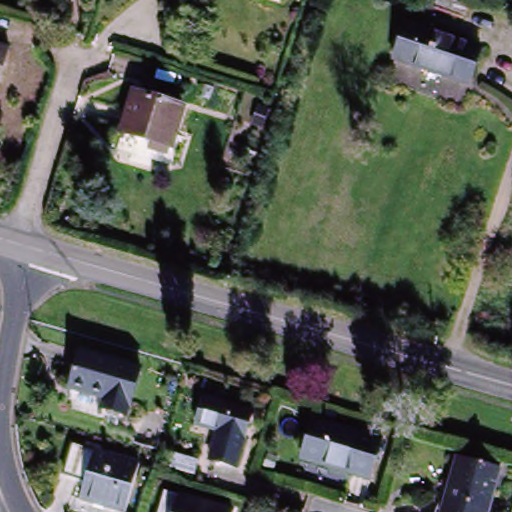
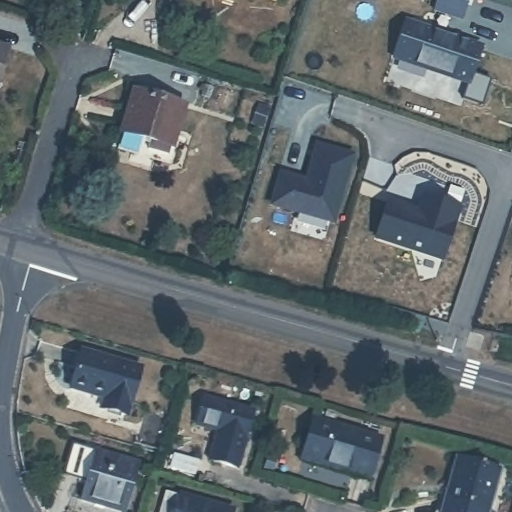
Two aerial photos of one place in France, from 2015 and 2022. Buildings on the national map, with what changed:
unchanged [(439,10),(442,0),(449,0),(467,6),(463,18),(439,10)]
unchanged [(463,84),(389,59),(402,25),(429,34),(431,29),(442,33),(441,37),(475,50),(463,84)]
unchanged [(0,94),(0,51),(13,55),(2,94),(0,94)]
unchanged [(152,136),(122,127),(134,90),(183,105),(173,137),(172,143),(152,136)]
new [(280,174),(306,181),(316,146),(352,156),(332,222),(271,205),(280,174)]
new [(387,204),(417,214),(422,199),(457,211),(440,261),(376,240),(387,204)]
unchanged [(105,400),(71,390),(82,352),(140,369),(125,417),(109,412),(102,410),(105,400)]
unchanged [(209,461),(217,432),(197,426),(204,399),(252,413),(237,470),(209,461)]
unchanged [(357,475),(358,472),(308,457),(320,418),(386,438),(372,480),(357,475)]
unchanged [(81,481),(60,475),(68,446),(135,465),(121,512),(113,512),(75,500),(81,481)]
unchanged [(501,472),(489,512),(442,512),(457,459),(501,472)]
unchanged [(180,497),(229,512),(159,512),(165,493),(180,497)]

